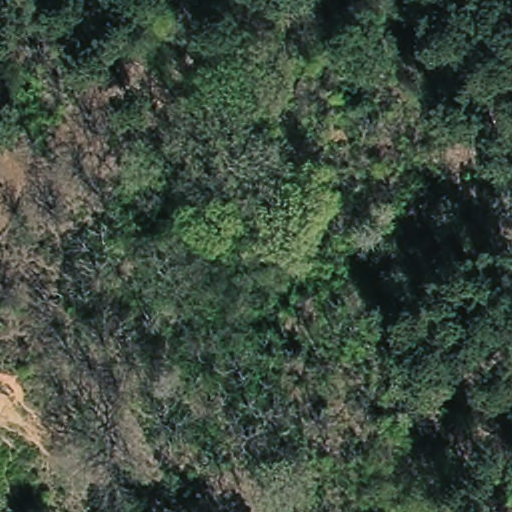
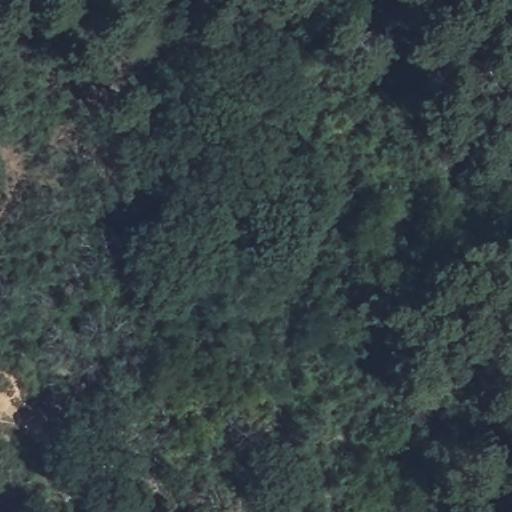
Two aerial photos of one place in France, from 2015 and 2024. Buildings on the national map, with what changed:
[]

